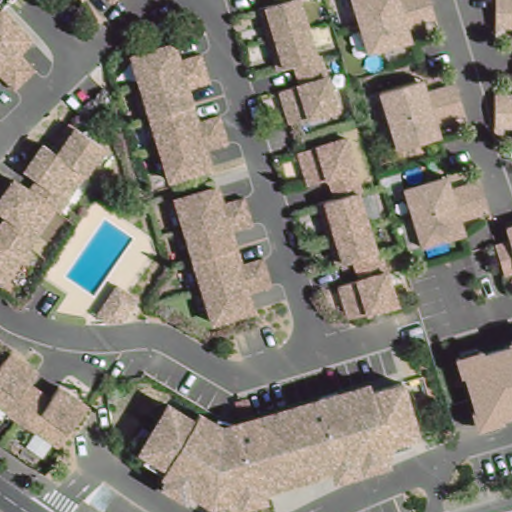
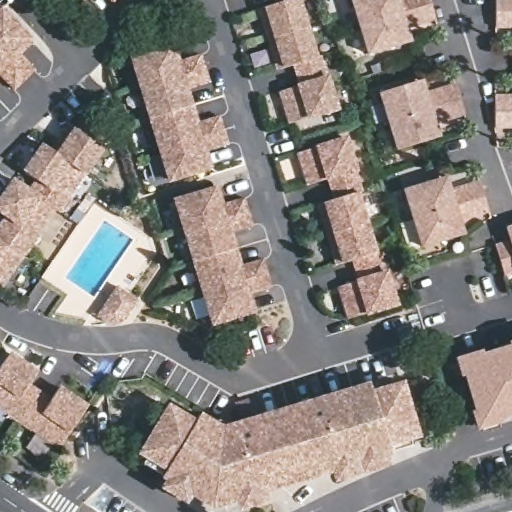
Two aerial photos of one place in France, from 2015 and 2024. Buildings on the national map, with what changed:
unchanged [(289,117),(280,88),(297,82),(292,59),(275,63),(259,6),(274,1),(273,0),(305,0),(335,106),(289,117)]
unchanged [(429,0),(433,16),(406,23),(409,38),(368,48),(353,0),(429,0)]
unchanged [(512,0),(512,26),(496,25),(497,0),(512,0)]
unchanged [(3,4),(35,37),(19,50),(35,67),(11,85),(0,72),(0,7),(3,4)]
unchanged [(132,50),(171,40),(177,57),(198,50),(207,81),(188,86),(196,119),(220,112),(228,142),(206,147),(211,165),(168,175),(132,50)]
unchanged [(378,88),(420,75),(425,87),(455,78),(464,111),(436,118),(439,132),(395,144),(378,88)]
unchanged [(512,93),(512,128),(495,127),(497,92),(512,93)]
unchanged [(8,209),(0,204),(0,192),(14,173),(29,184),(36,173),(21,164),(40,138),(49,144),(67,117),(106,143),(3,279),(0,277),(0,221),(8,209)]
unchanged [(349,133),(397,302),(347,315),(338,282),(356,278),(348,253),(332,258),(317,200),(334,195),(327,174),(306,180),(297,149),(349,133)]
unchanged [(405,184),(448,172),(452,184),(478,176),(487,208),(460,216),(464,232),(421,241),(405,184)]
unchanged [(214,184),(220,202),(244,195),(252,223),(232,229),(240,260),(263,254),(270,285),(248,290),(253,310),(213,321),(174,196),(214,184)]
unchanged [(505,237),(500,221),(512,218),(512,267),(500,271),(491,241),(505,237)]
unchanged [(119,283),(138,295),(125,316),(117,317),(100,310),(119,283)]
unchanged [(512,336),(512,410),(472,422),(468,407),(474,405),(465,370),(458,371),(454,353),(512,336)]
unchanged [(10,348),(37,366),(27,382),(50,397),(60,380),(89,401),(58,442),(0,404),(0,362),(10,348)]
unchanged [(166,400),(195,416),(199,408),(222,420),(368,377),(371,384),(401,375),(418,433),(386,443),(391,459),(334,476),(331,468),(264,484),(264,503),(214,505),(190,491),(186,497),(156,479),(165,465),(138,447),(166,400)]

